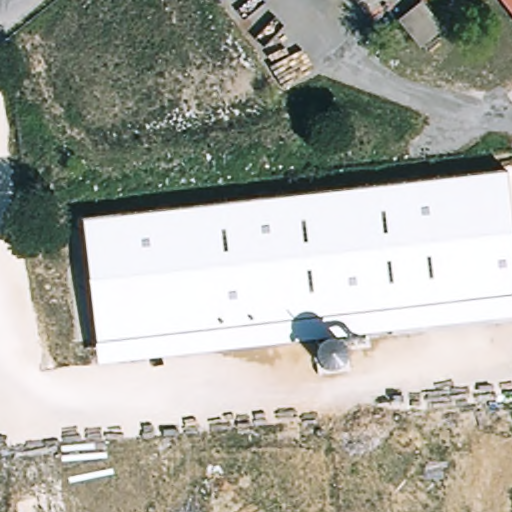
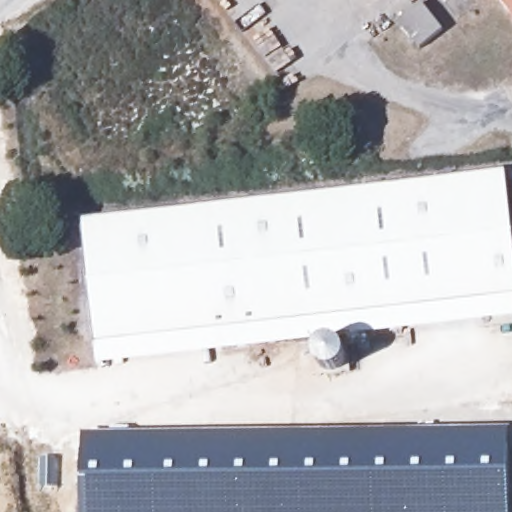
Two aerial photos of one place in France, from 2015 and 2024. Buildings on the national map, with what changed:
unchanged [(499,0),(512,0),(512,17),(499,0)]
unchanged [(347,339),(349,369),(316,371),(312,342),(100,365),(84,221),(507,173),(512,217),(512,318),(347,339)]
new [(511,428),(512,493),(512,512),(84,512),(84,436),(511,428)]

